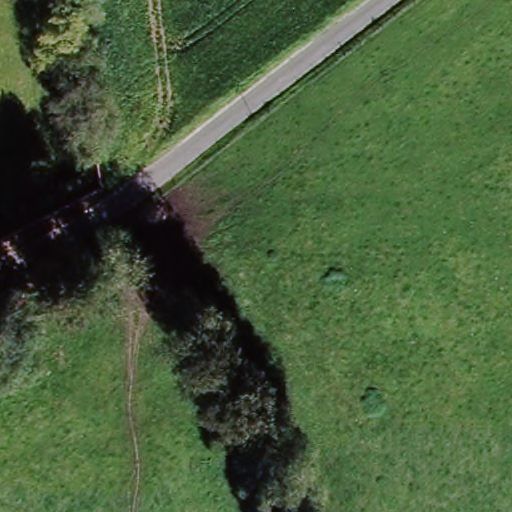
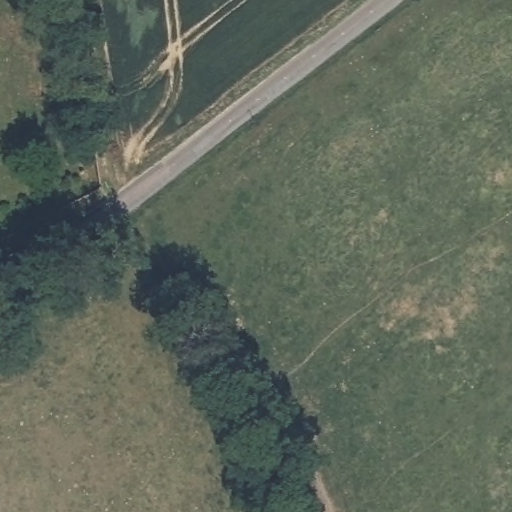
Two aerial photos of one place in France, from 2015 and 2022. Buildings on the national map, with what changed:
unchanged [(192,412),(217,401),(240,452),(215,463),(192,412)]

